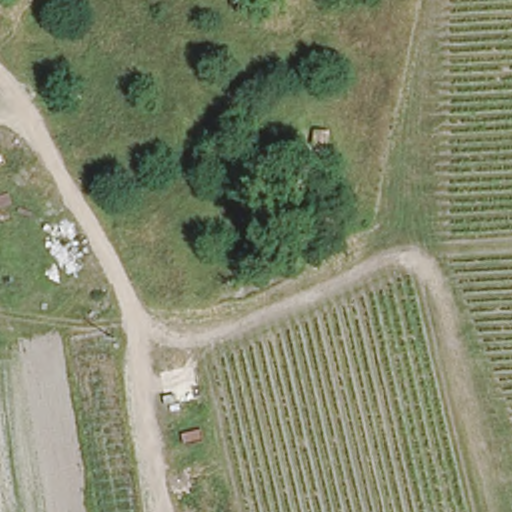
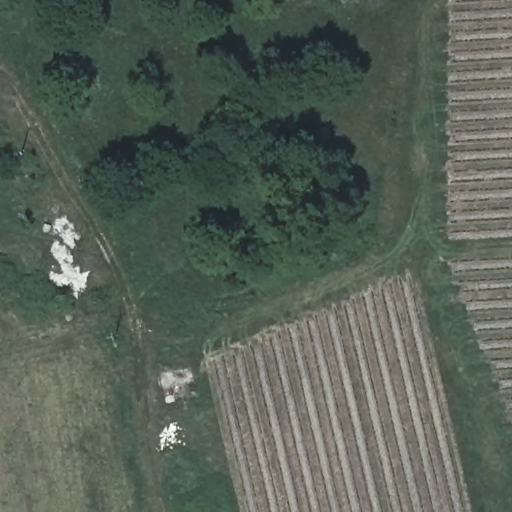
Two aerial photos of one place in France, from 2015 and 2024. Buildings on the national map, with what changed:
unchanged [(328,133),(325,162),(312,161),(315,132),(328,133)]

